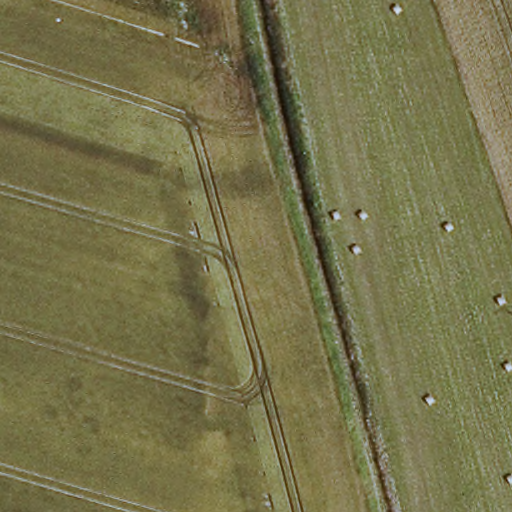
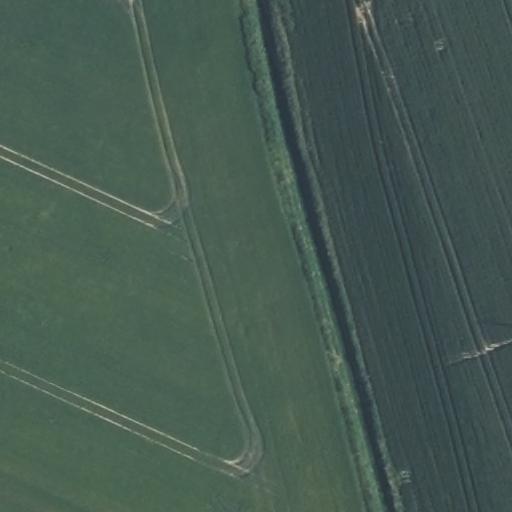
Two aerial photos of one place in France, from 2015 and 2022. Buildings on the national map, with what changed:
[]

